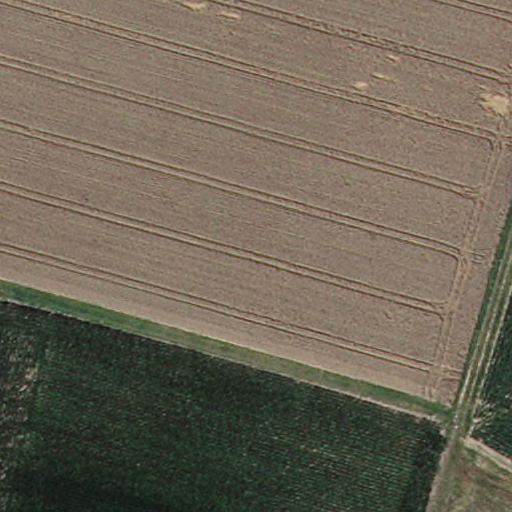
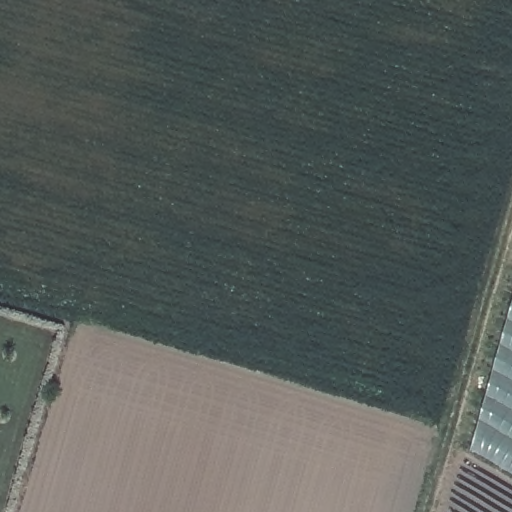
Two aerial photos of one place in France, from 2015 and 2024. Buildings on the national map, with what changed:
new [(512,472),(472,449),(512,312),(512,472)]

